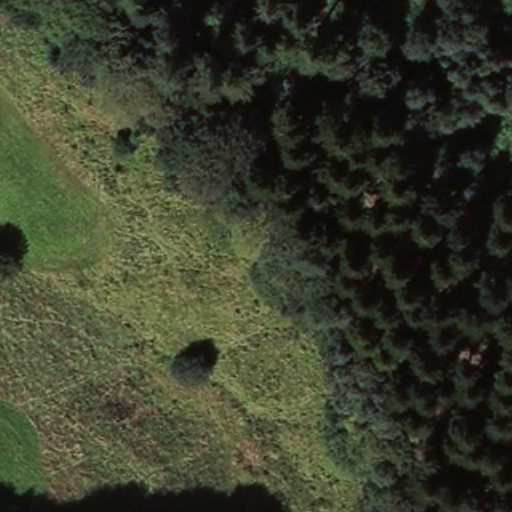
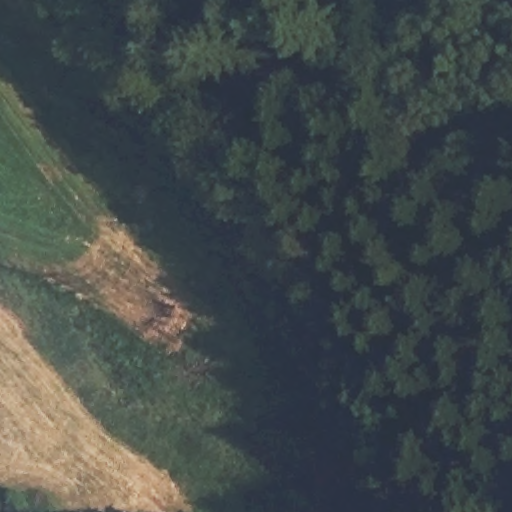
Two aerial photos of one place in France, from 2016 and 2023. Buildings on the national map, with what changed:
unchanged [(148,20),(169,47),(151,58),(131,32),(148,20)]

